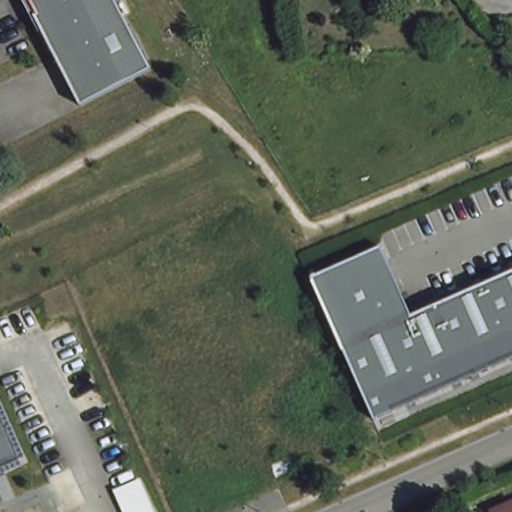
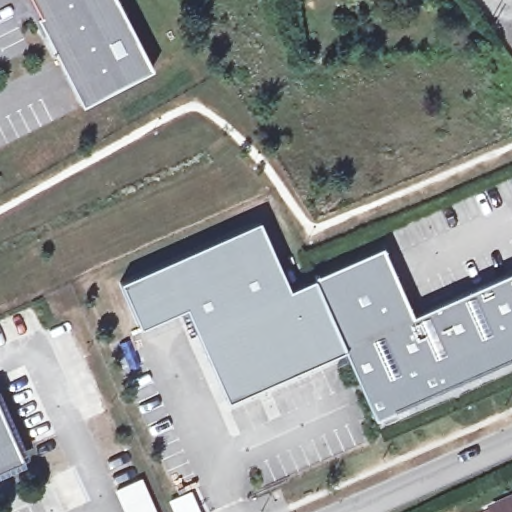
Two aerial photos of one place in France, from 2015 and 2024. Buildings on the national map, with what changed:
unchanged [(84,100),(37,12),(31,0),(120,0),(153,63),(84,100)]
new [(226,400),(186,308),(138,328),(119,283),(257,223),(287,290),(315,278),(343,343),(345,348),(226,400)]
unchanged [(407,316),(512,267),(512,356),(377,420),(343,343),(314,275),(375,249),(407,316)]
unchanged [(24,460),(0,471),(0,406),(24,460)]
unchanged [(116,486),(140,476),(157,512),(126,512),(116,486)]
unchanged [(509,505),(512,507),(512,512),(493,512),(509,505)]

